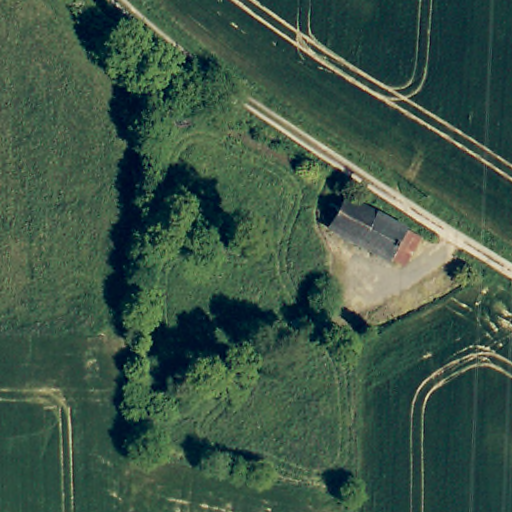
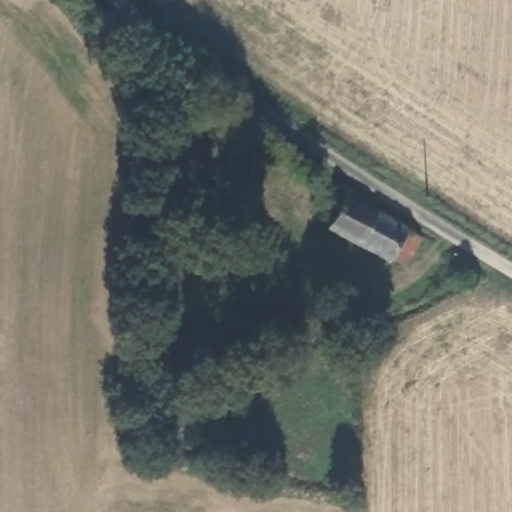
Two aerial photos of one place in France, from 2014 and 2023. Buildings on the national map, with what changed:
unchanged [(411,263),(398,257),(396,261),(334,229),(337,223),(328,217),(337,202),(346,207),(350,199),(411,231),(422,237),(411,263)]

